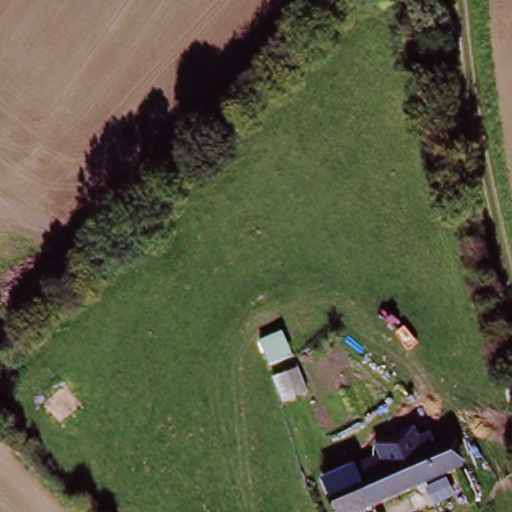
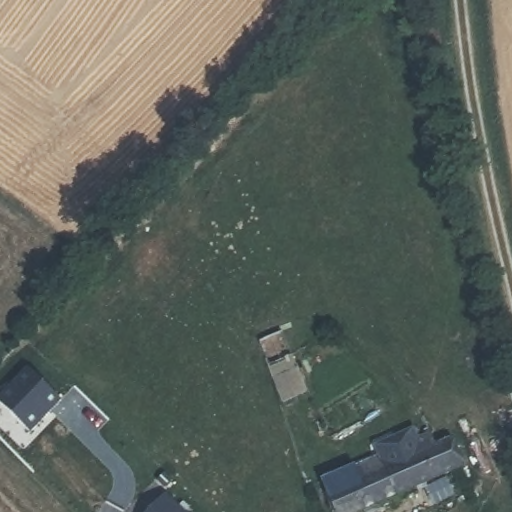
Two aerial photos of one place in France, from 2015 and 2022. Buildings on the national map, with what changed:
new [(57,401),(26,432),(0,406),(0,393),(25,369),(57,401)]
unchanged [(470,472),(410,491),(401,464),(461,445),(470,472)]
unchanged [(396,447),(401,464),(410,491),(389,500),(375,456),(396,447)]
unchanged [(337,512),(325,472),(375,456),(389,500),(352,512),(337,512)]
new [(183,512),(145,512),(164,493),(183,512)]

